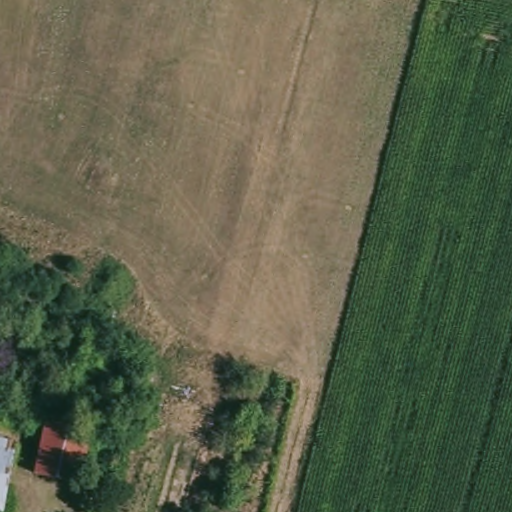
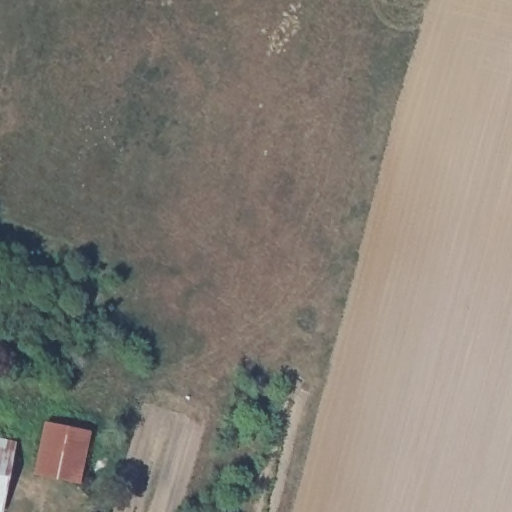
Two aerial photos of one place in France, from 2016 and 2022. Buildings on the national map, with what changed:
unchanged [(79,485),(37,474),(36,474),(49,425),(49,423),(91,433),(79,485)]
unchanged [(7,512),(0,512),(0,443),(25,451),(7,512)]

